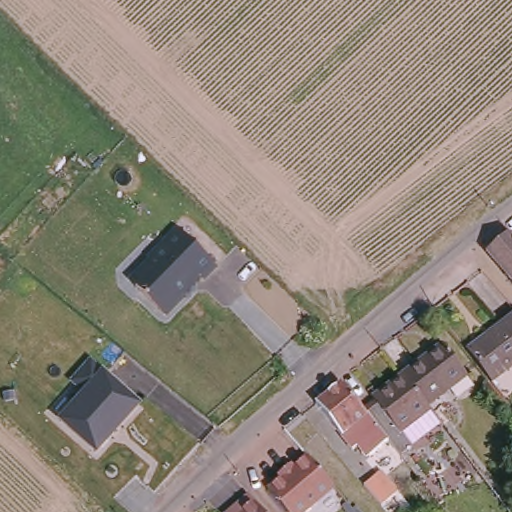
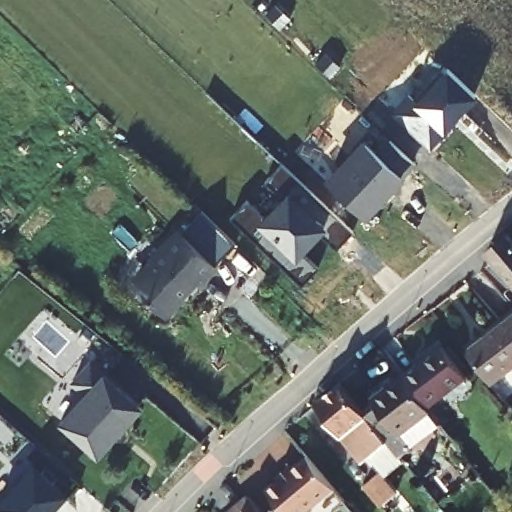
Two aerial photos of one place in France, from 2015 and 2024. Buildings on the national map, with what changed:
new [(477,94),(445,130),(431,148),(392,113),(410,93),(417,99),(447,65),(477,94)]
new [(376,151),(389,137),(416,162),(403,177),(367,216),(324,177),(361,136),(376,151)]
new [(354,229),(338,244),(323,230),(302,251),(317,264),(303,281),(234,215),(249,198),(264,214),(282,193),(267,180),(284,162),(354,229)]
unchanged [(186,235),(204,215),(235,245),(215,266),(201,280),(197,276),(186,286),(182,287),(182,292),(179,295),(181,297),(164,316),(134,289),(134,280),(149,264),(149,259),(176,230),(186,235)]
unchanged [(504,270),(506,269),(487,247),(512,228),(512,280),(504,270)]
unchanged [(491,379),(467,348),(512,314),(512,363),(491,379)]
unchanged [(402,371),(442,341),(467,374),(428,404),(402,371)]
unchanged [(104,450),(67,419),(92,391),(79,379),(96,359),(146,401),(104,450)]
unchanged [(401,430),(412,443),(400,452),(388,437),(364,407),(375,399),(372,395),(402,371),(428,404),(430,407),(401,430)]
unchanged [(375,447),(366,435),(354,445),(317,399),(341,379),(364,407),(388,437),(375,447)]
new [(52,512),(0,512),(0,492),(32,457),(69,493),(52,512)]
unchanged [(283,512),(267,493),(307,459),(334,489),(307,512),(283,512)]
unchanged [(377,476),(394,497),(380,509),(377,506),(362,488),(377,476)]
unchanged [(251,512),(233,512),(244,503),(251,512)]

